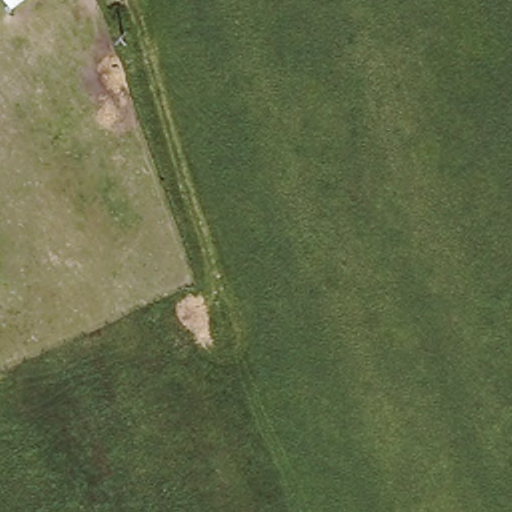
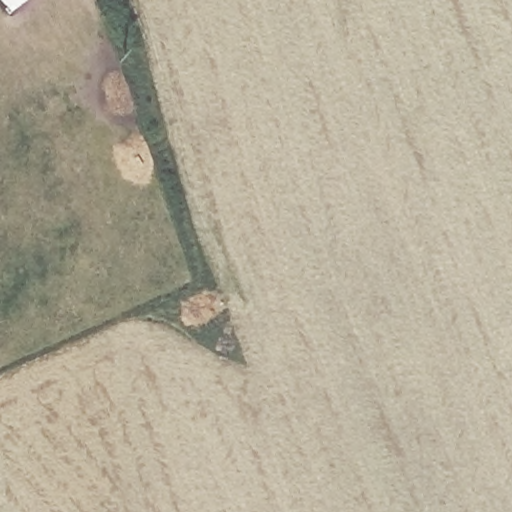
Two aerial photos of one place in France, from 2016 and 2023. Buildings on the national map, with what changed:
unchanged [(12,8),(6,0),(24,0),(12,8)]

